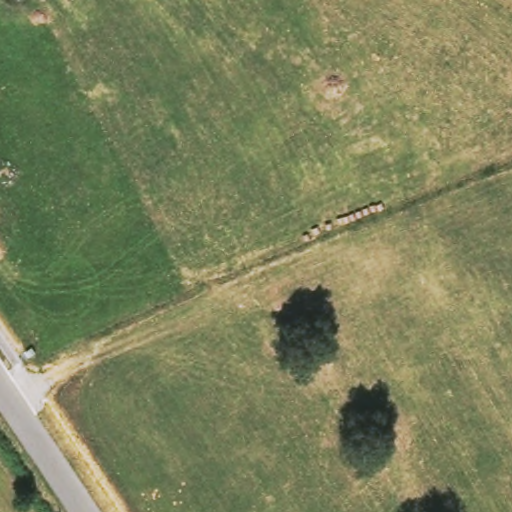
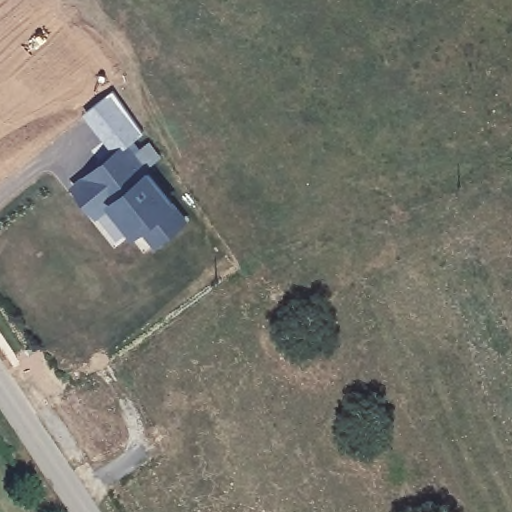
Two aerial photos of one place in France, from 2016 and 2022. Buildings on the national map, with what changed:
new [(114,93),(143,134),(129,143),(149,170),(175,202),(190,220),(156,248),(142,230),(133,236),(109,206),(97,217),(71,185),(101,162),(98,159),(111,149),(84,114),(114,93)]

